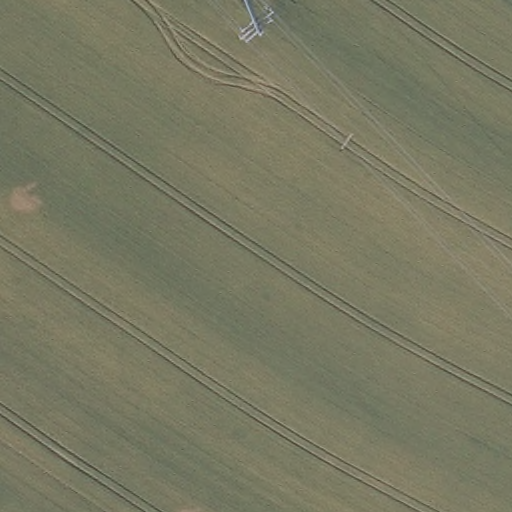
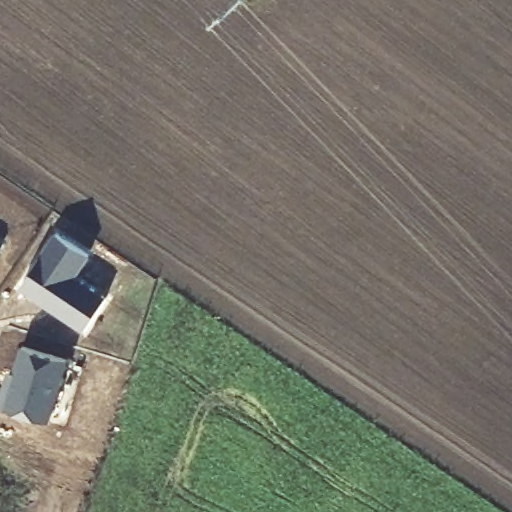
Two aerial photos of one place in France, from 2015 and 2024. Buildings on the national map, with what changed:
new [(92,256),(79,273),(109,296),(86,330),(21,287),(57,232),(92,256)]
new [(71,357),(52,421),(0,406),(9,368),(16,370),(23,343),(71,357)]

